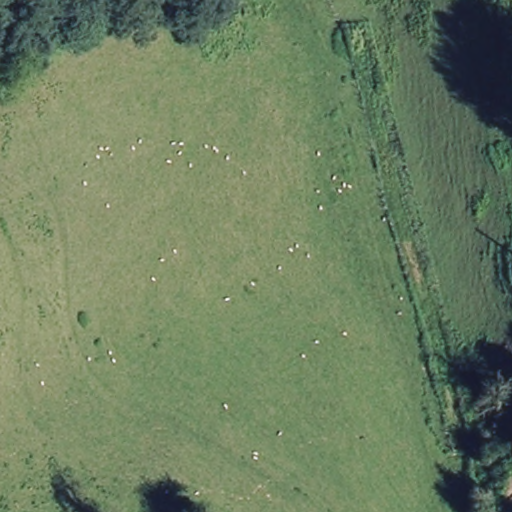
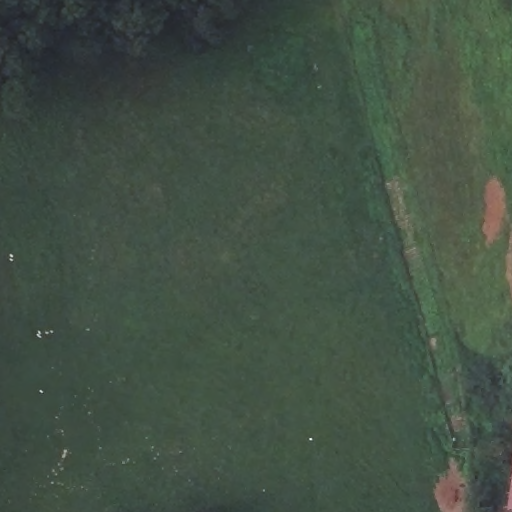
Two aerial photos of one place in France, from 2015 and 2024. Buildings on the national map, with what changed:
unchanged [(512,496),(512,509),(511,509),(512,496)]

